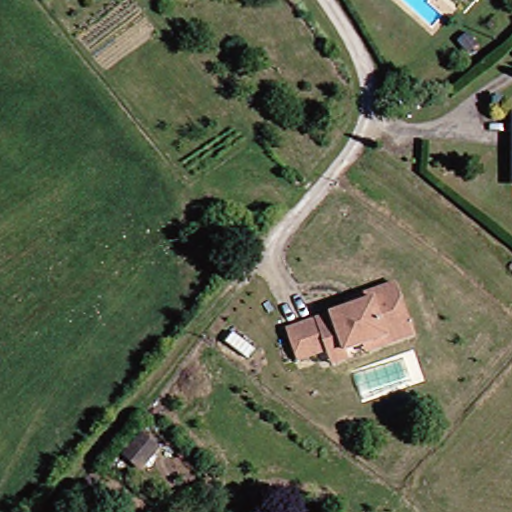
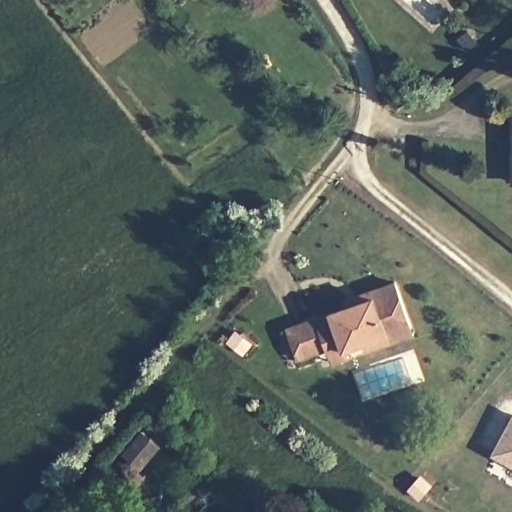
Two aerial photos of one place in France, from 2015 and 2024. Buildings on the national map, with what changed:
unchanged [(345,360),(328,365),(324,354),(294,363),(285,332),(346,311),(343,304),(392,285),(409,328),(412,335),(364,352),(361,345),(342,352),(345,360)]
new [(512,420),(512,464),(493,454),(512,420)]
unchanged [(131,447),(144,432),(161,445),(150,462),(131,447)]

